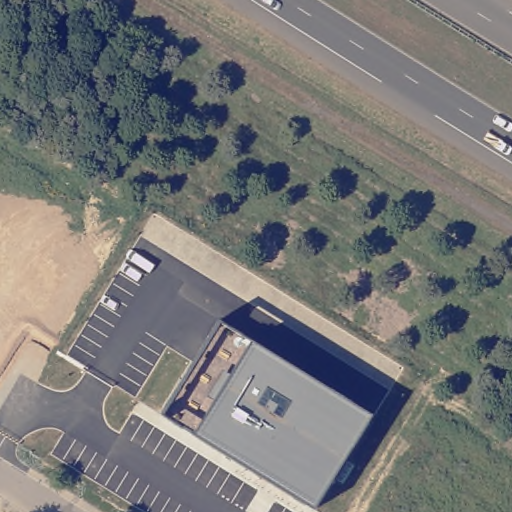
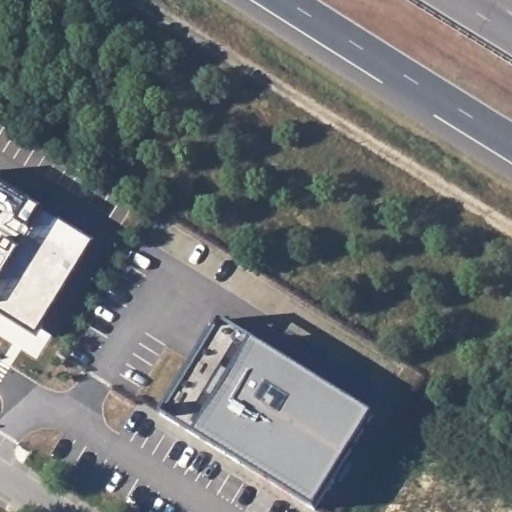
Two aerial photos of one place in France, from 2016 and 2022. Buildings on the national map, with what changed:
new [(36,337),(0,315),(0,185),(45,213),(90,243),(36,337)]
unchanged [(370,415),(315,508),(162,414),(220,321),(370,415)]

